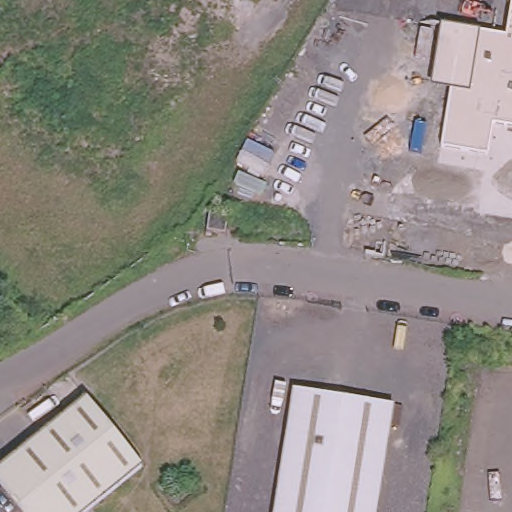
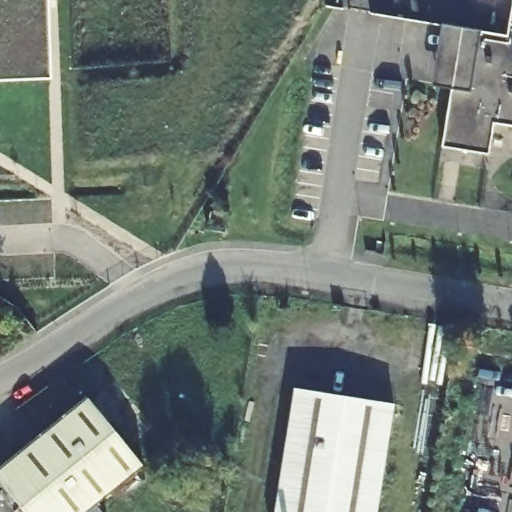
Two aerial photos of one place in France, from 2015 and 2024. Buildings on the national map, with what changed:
new [(0,80),(0,0),(48,0),(50,80),(0,80)]
unchanged [(493,124),(488,157),(440,149),(450,91),(430,86),(440,26),(505,37),(511,0),(512,0),(512,127),(493,124)]
unchanged [(210,228),(214,211),(230,213),(227,232),(210,228)]
unchanged [(378,512),(276,512),(297,385),(397,401),(378,512)]
unchanged [(145,468),(125,485),(91,512),(27,512),(0,479),(0,469),(90,398),(131,450),(145,468)]

